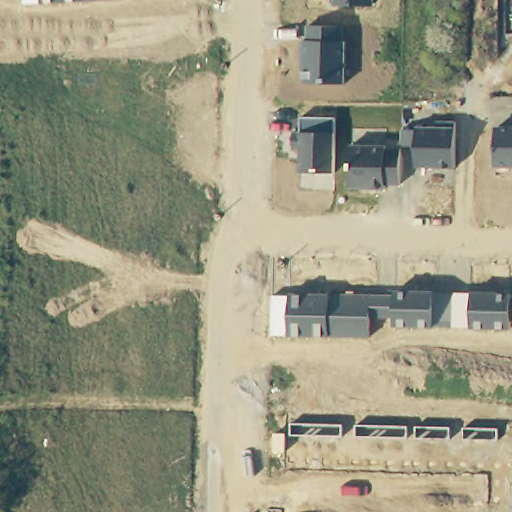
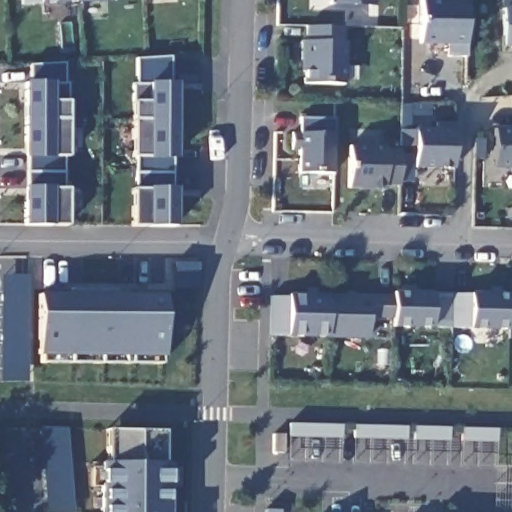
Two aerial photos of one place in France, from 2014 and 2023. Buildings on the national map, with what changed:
unchanged [(24,0),(87,0),(25,5),(24,0)]
unchanged [(333,6),(332,0),(374,0),(374,5),(333,6)]
new [(445,56),(447,45),(419,44),(422,0),(468,0),(465,57),(445,56)]
unchanged [(512,0),(512,34),(504,34),(504,0),(512,0)]
unchanged [(343,41),(346,41),(346,84),(302,84),(304,41),(308,41),(308,26),(343,26),(343,41)]
new [(134,83),(138,83),(138,57),(172,55),(172,82),(177,82),(177,119),(134,118),(134,83)]
new [(27,81),(32,81),(32,64),(66,62),(66,82),(70,82),(69,118),(27,118),(27,81)]
unchanged [(335,171),(300,173),(300,148),(293,148),(293,133),(302,133),(302,117),(336,118),(335,171)]
new [(29,154),(26,154),(27,118),(69,118),(69,156),(66,156),(66,172),(29,171),(29,154)]
new [(137,157),(134,157),(134,118),(177,119),(177,155),(174,155),(174,172),(137,172),(137,157)]
unchanged [(404,130),(417,131),(417,127),(439,127),(439,121),(458,121),(453,169),(414,168),(414,149),(403,149),(404,130)]
unchanged [(495,127),(512,127),(512,167),(495,166),(495,127)]
unchanged [(401,184),(387,184),(387,190),(346,188),(349,145),(403,149),(401,184)]
new [(26,188),(29,188),(29,171),(66,172),(66,188),(69,188),(69,225),(26,225),(26,188)]
new [(134,188),(137,188),(137,172),(174,172),(174,188),(177,188),(176,226),(134,225),(134,188)]
new [(29,382),(0,381),(2,274),(30,275),(29,382)]
unchanged [(452,327),(392,327),(392,318),(373,317),(372,335),(272,336),(272,294),(328,295),(394,297),(394,290),(435,290),(435,294),(510,295),(510,298),(512,299),(512,329),(452,329),(452,327)]
new [(167,355),(137,356),(137,364),(94,365),(94,355),(38,356),(38,295),(71,293),(133,294),(168,294),(167,355)]
new [(292,423),(345,424),(344,437),(292,435),(292,423)]
new [(357,424),(409,426),(409,438),(357,437),(357,424)]
new [(74,512),(47,512),(41,426),(69,427),(74,512)]
new [(452,427),(452,439),(417,439),(417,426),(452,427)]
new [(500,428),(499,440),(464,439),(465,427),(500,428)]
new [(164,461),(170,461),(170,467),(181,467),(181,486),(171,486),(169,506),(165,505),(164,512),(102,512),(102,487),(92,487),(93,467),(102,467),(102,462),(107,462),(106,429),(164,432),(164,461)]
new [(16,512),(0,512),(0,455),(11,454),(16,512)]

